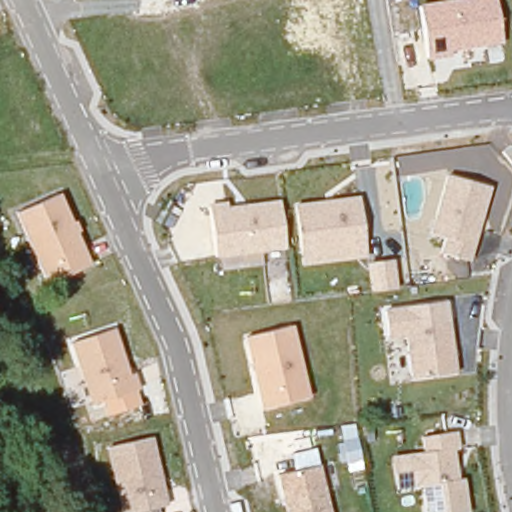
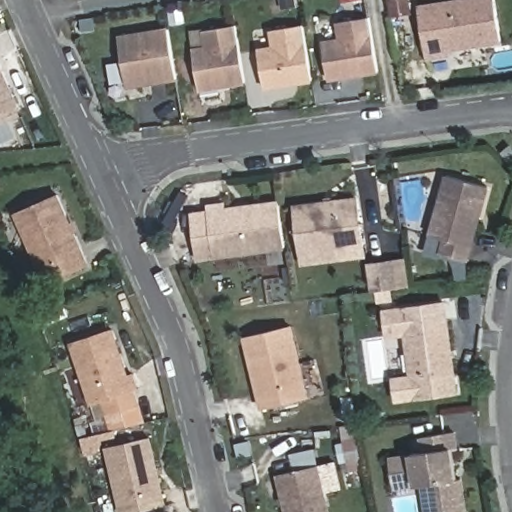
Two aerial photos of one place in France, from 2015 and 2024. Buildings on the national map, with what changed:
unchanged [(501,41),(449,50),(452,58),(429,61),(418,4),(442,0),(495,0),(501,41)]
new [(382,70),(333,78),(327,41),(344,38),(342,21),(373,16),(382,70)]
new [(315,80),(268,88),(261,50),(278,47),(275,30),(305,25),(315,80)]
new [(179,77),(129,85),(120,36),(170,27),(179,77)]
new [(247,83),(201,91),(194,52),(209,49),(207,32),(237,27),(247,83)]
new [(0,118),(0,59),(11,85),(14,92),(22,108),(0,118)]
unchanged [(469,264),(439,256),(443,240),(429,235),(445,176),(489,187),(469,264)]
unchanged [(367,258),(302,266),(294,204),(359,197),(367,258)]
unchanged [(49,282),(18,215),(59,198),(88,264),(49,282)]
unchanged [(225,200),(226,205),(279,199),(285,248),(260,250),(263,266),(220,271),(219,258),(213,258),(207,203),(225,200)]
new [(391,262),(394,289),(372,293),(368,265),(391,262)]
unchanged [(457,375),(411,381),(404,337),(386,339),(381,307),(446,300),(457,375)]
unchanged [(309,397),(262,409),(245,338),(294,324),(309,397)]
unchanged [(135,372),(141,389),(92,406),(70,342),(114,329),(129,373),(135,372)]
unchanged [(453,451),(458,480),(466,479),(471,512),(424,512),(421,488),(413,488),(408,455),(422,453),(419,437),(458,431),(462,449),(453,451)]
unchanged [(156,506),(158,512),(119,512),(106,447),(153,435),(170,505),(156,506)]
unchanged [(295,471),(293,452),(318,448),(322,465),(332,512),(285,512),(277,475),(295,471)]

